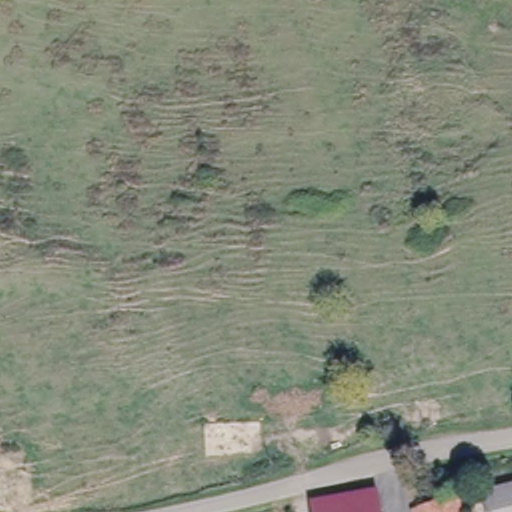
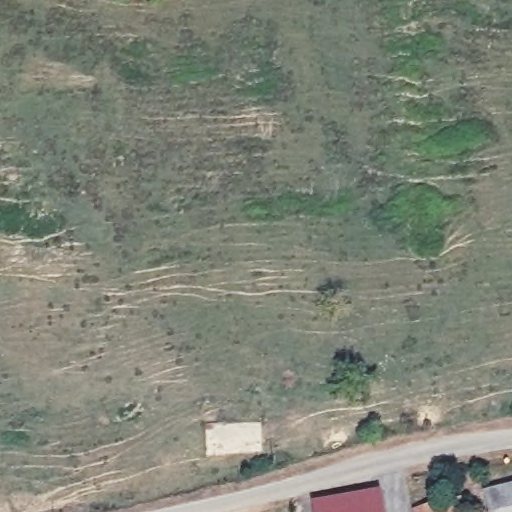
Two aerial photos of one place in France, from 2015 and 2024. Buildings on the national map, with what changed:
unchanged [(512,481),(512,512),(494,512),(490,486),(512,481)]
unchanged [(318,503),(378,492),(381,512),(319,512),(318,503)]
unchanged [(411,509),(446,503),(458,501),(459,512),(411,512),(411,509)]

